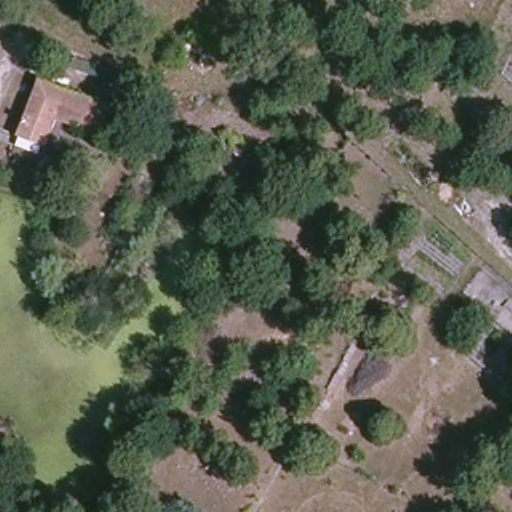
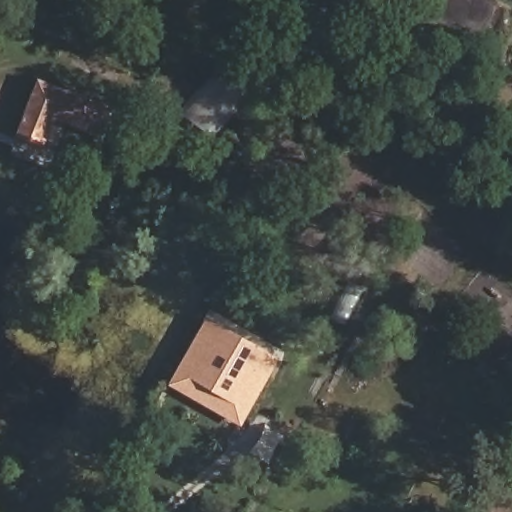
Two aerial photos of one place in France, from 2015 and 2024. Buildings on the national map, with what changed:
unchanged [(59,118),(45,144),(16,129),(45,76),(119,115),(105,141),(59,118)]
unchanged [(244,158),(219,141),(227,129),(252,147),(244,158)]
new [(241,426),(169,385),(207,316),(280,358),(241,426)]

